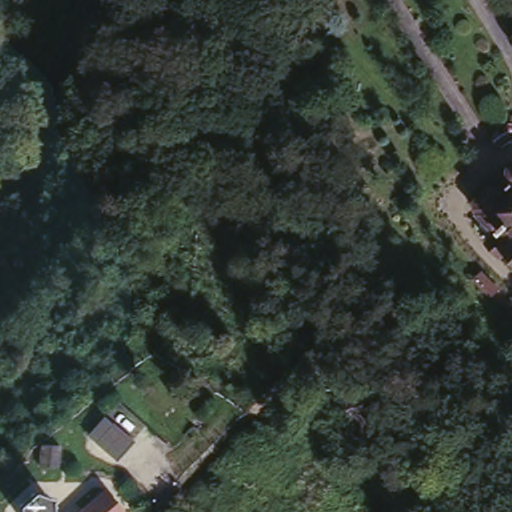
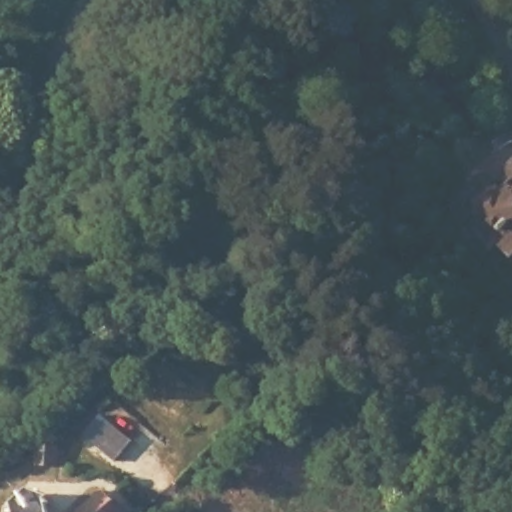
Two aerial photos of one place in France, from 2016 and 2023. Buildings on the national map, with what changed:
unchanged [(490,238),(501,228),(481,209),(485,205),(481,201),(482,194),(495,182),(502,182),(506,185),(512,179),(512,244),(511,243),(503,251),(490,238)]
unchanged [(87,432),(102,415),(131,439),(115,458),(87,432)]
unchanged [(117,507),(111,512),(69,512),(99,486),(117,507)]
unchanged [(30,491),(45,496),(49,511),(50,512),(22,512),(19,502),(30,491)]
unchanged [(446,492),(465,512),(449,512),(438,499),(446,492)]

